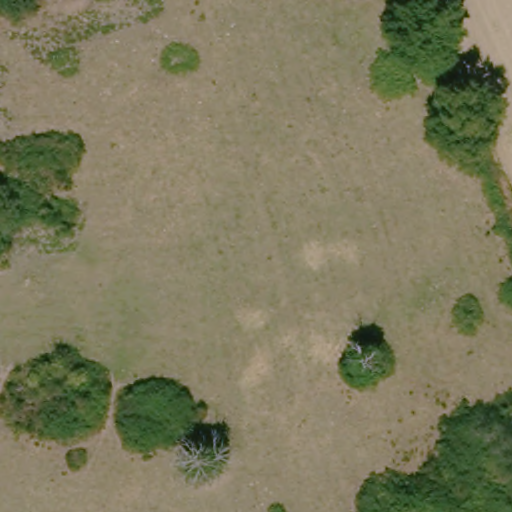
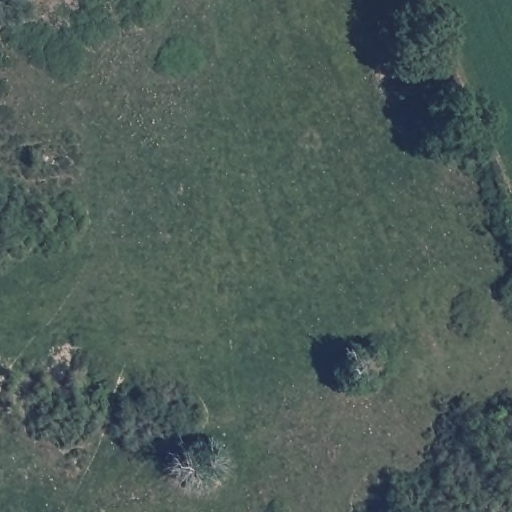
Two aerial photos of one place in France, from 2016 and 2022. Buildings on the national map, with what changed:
[]

